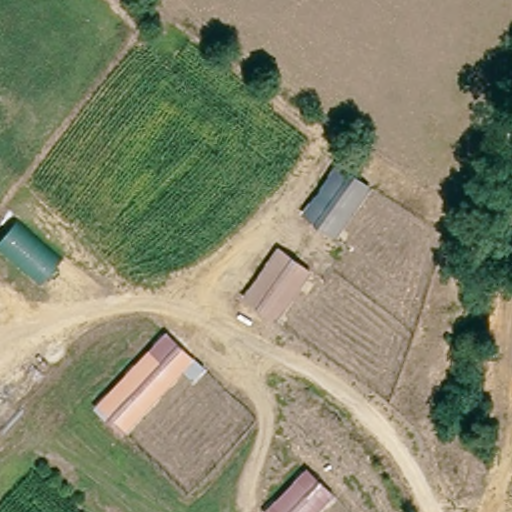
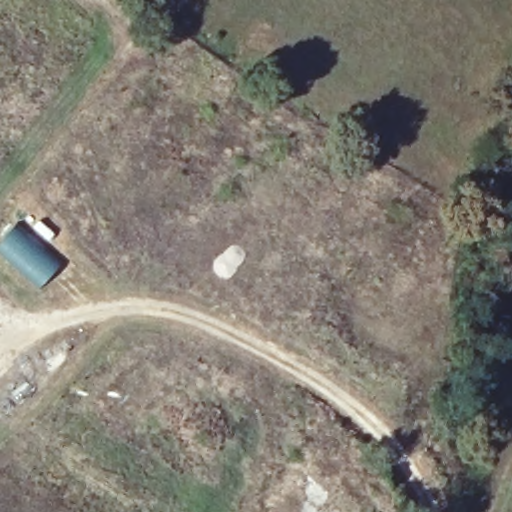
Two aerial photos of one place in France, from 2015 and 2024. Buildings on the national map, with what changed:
demolished [(301,220),(337,164),(372,187),(336,244),(301,220)]
unchanged [(0,242),(17,222),(61,262),(40,288),(0,253),(0,242)]
demolished [(241,302),(278,251),(313,275),(277,328),(241,302)]
demolished [(167,337),(197,364),(122,440),(94,410),(167,337)]
demolished [(335,498),(322,512),(265,512),(306,472),(335,498)]

